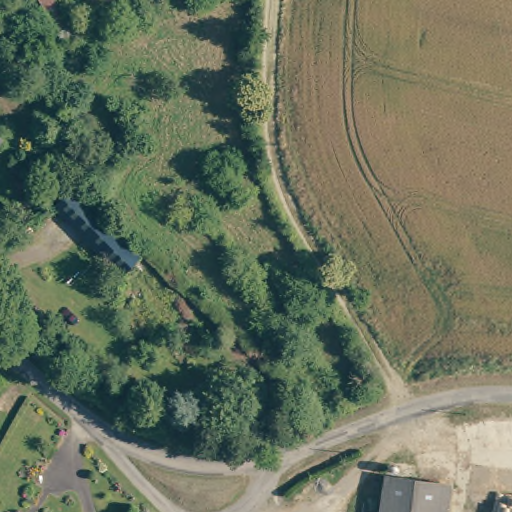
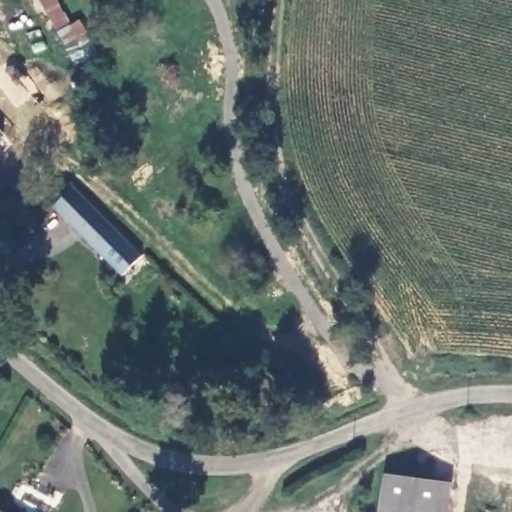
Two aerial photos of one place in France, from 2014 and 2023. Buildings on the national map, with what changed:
unchanged [(0,145),(0,138),(4,141),(0,145)]
unchanged [(53,206),(71,187),(104,218),(86,237),(53,206)]
unchanged [(104,218),(143,254),(126,273),(86,237),(104,218)]
unchanged [(381,503),(382,493),(383,477),(450,484),(446,512),(379,512),(381,503)]

